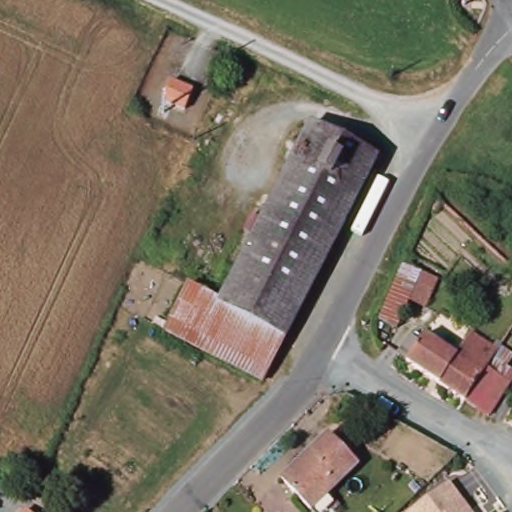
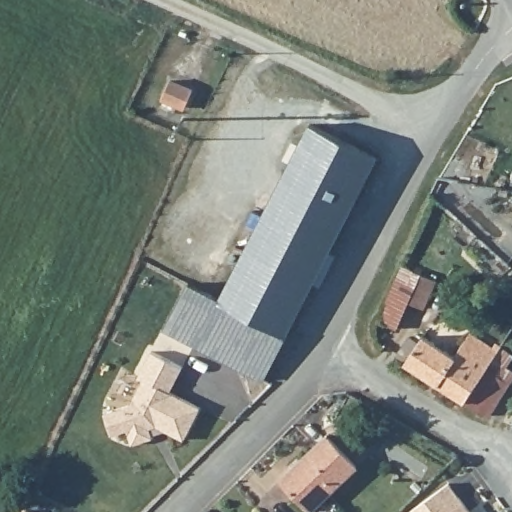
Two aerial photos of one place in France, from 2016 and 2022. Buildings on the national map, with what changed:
unchanged [(290,330),(221,294),(311,121),(380,156),(290,330)]
unchanged [(443,277),(431,311),(411,303),(401,327),(380,319),(402,264),(443,277)]
unchanged [(190,278),(221,294),(290,330),(266,375),(165,324),(190,278)]
unchanged [(476,406),(473,405),(407,360),(420,340),(430,347),(435,342),(465,363),(481,341),(509,359),(497,375),(512,385),(512,401),(498,420),(476,406)]
new [(135,407),(147,381),(142,378),(155,351),(186,367),(174,392),(205,408),(189,441),(160,426),(156,431),(159,440),(137,447),(132,432),(116,437),(109,415),(135,407)]
unchanged [(361,468),(317,512),(288,480),(332,436),(361,468)]
unchanged [(451,486),(471,512),(417,512),(451,486)]
unchanged [(26,510),(29,512),(24,512),(26,510)]

